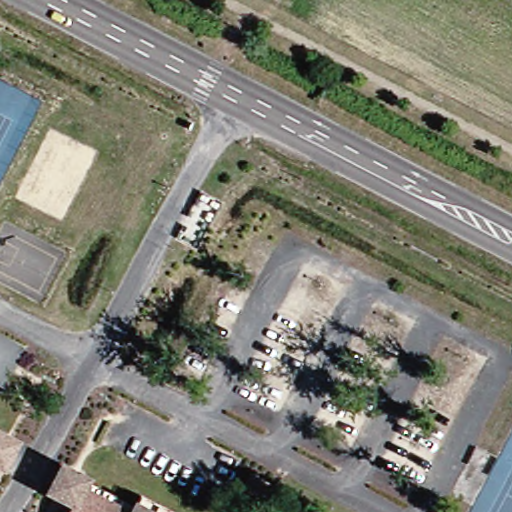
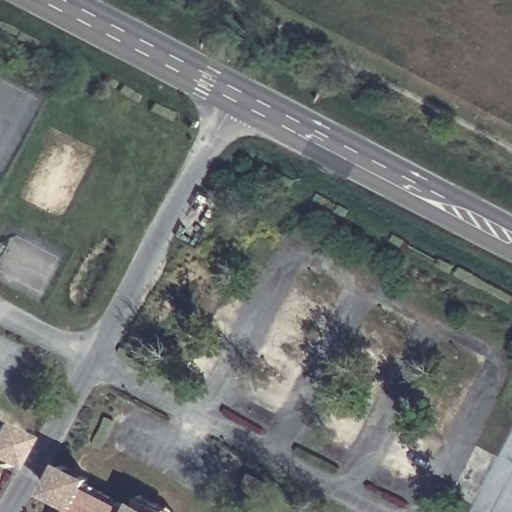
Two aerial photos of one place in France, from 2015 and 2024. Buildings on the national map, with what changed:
unchanged [(15,447),(22,450),(8,477),(0,473),(0,439),(15,447)]
unchanged [(265,467),(281,476),(273,493),(256,484),(265,467)]
unchanged [(48,496),(62,469),(65,471),(89,483),(83,493),(121,512),(72,512),(74,509),(48,496)]
unchanged [(140,499),(166,512),(133,512),(136,507),(140,499)]

